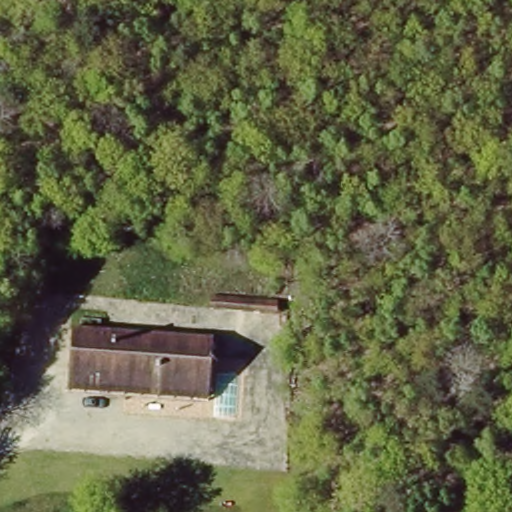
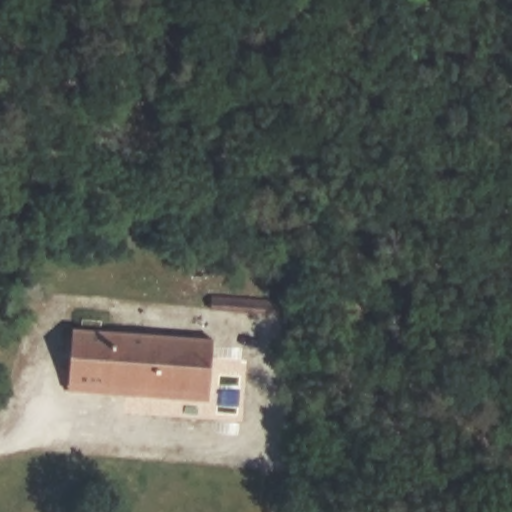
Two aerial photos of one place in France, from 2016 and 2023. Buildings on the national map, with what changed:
unchanged [(70,393),(78,325),(212,338),(208,400),(70,393)]

